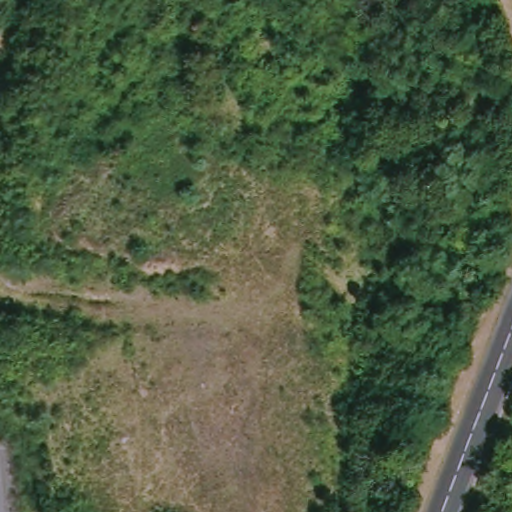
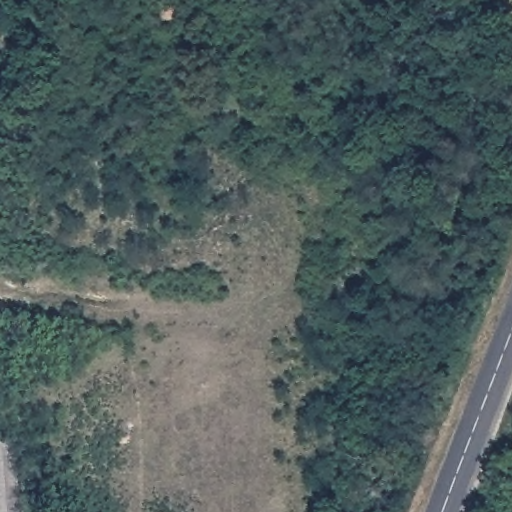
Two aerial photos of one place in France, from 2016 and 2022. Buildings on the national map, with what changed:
unchanged [(12,512),(0,512),(0,445),(6,444),(12,512)]

